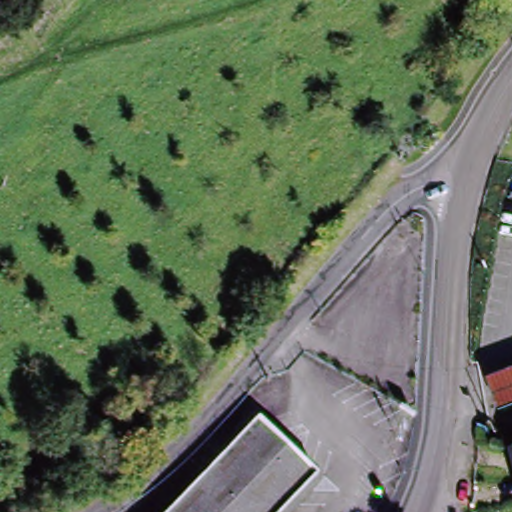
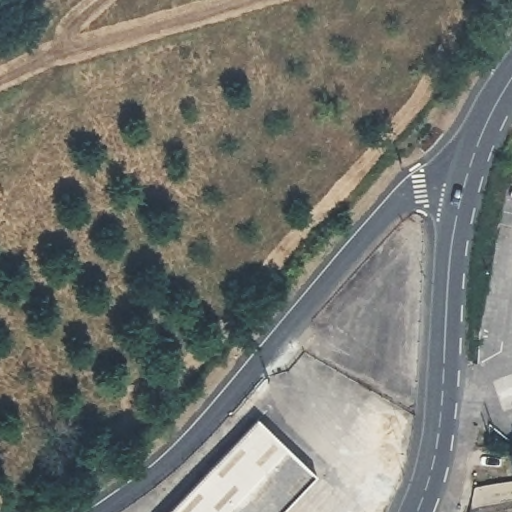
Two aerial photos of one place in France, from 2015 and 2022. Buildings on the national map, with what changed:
unchanged [(488,384),(512,374),(512,409),(500,414),(488,384)]
unchanged [(286,512),(175,512),(257,425),(316,480),(286,512)]
unchanged [(512,448),(512,467),(507,449),(512,448)]

